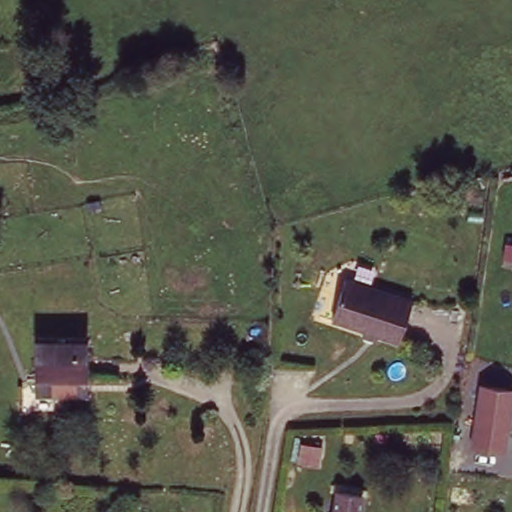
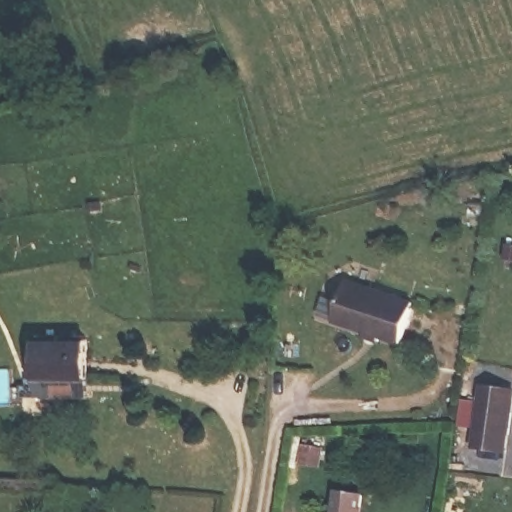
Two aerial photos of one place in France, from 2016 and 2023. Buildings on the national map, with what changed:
unchanged [(361,338),(365,327),(333,319),(346,275),(418,294),(405,338),(383,333),(380,343),(361,338)]
unchanged [(98,339),(92,400),(35,396),(40,338),(98,339)]
unchanged [(512,405),(507,456),(471,451),(479,384),(512,387),(512,405)]
unchanged [(321,470),(296,466),(301,442),(325,447),(321,470)]
unchanged [(366,495),(364,512),(331,512),(332,493),(366,495)]
unchanged [(104,512),(104,511),(119,512),(104,512)]

